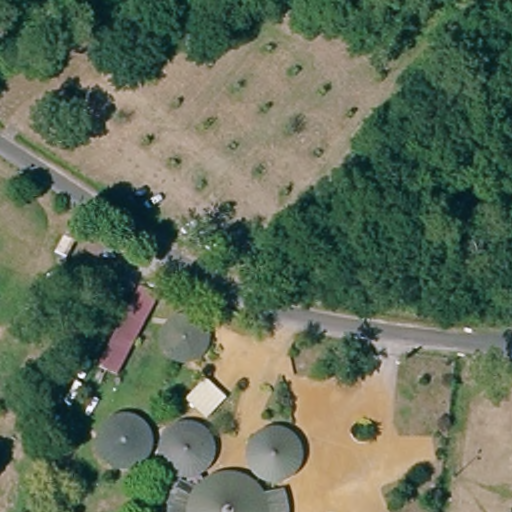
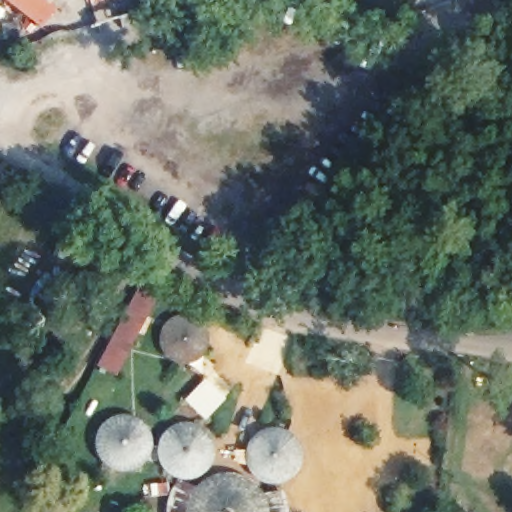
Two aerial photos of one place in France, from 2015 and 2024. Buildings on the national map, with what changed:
new [(58,8),(43,28),(5,0),(47,0),(58,8)]
unchanged [(185,329),(195,334),(201,346),(200,357),(191,368),(176,371),(165,365),(160,352),(163,338),(174,330),(185,329)]
unchanged [(131,469),(118,471),(105,467),(96,457),(94,444),(99,431),(109,423),(122,420),(134,425),(143,435),(145,448),(141,461),(131,469)]
unchanged [(189,422),(202,426),(210,434),(214,446),(213,458),(208,467),(199,476),(188,481),(177,480),(166,477),(159,470),(157,461),(157,448),(159,438),(165,432),(179,422),(189,422)]
unchanged [(258,430),(273,427),(288,430),(299,440),(303,454),(299,467),(293,477),(284,484),(273,486),(259,484),(251,476),(244,467),(243,457),(250,438),(258,430)]
unchanged [(164,498),(167,483),(189,488),(203,480),(216,474),(229,472),(242,475),(250,481),(262,492),(281,489),(285,504),(285,512),(162,512),(161,511),(164,498)]

